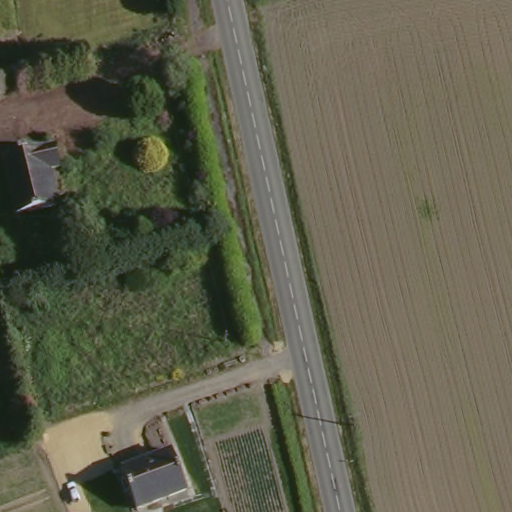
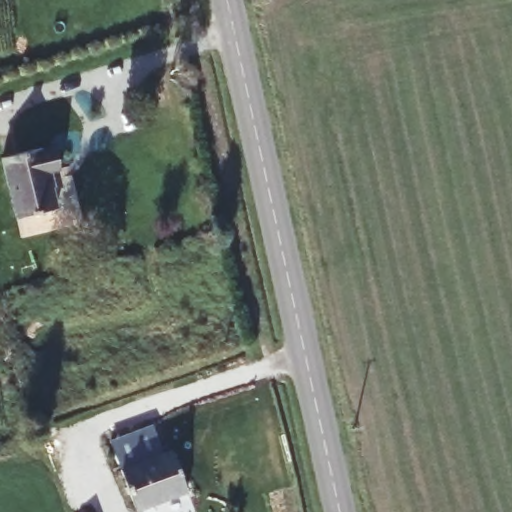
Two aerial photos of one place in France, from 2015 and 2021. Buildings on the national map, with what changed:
unchanged [(48,186),(53,206),(15,217),(0,168),(0,159),(36,149),(36,153),(50,149),(56,167),(46,170),(51,184),(48,186)]
unchanged [(135,511),(120,472),(169,454),(184,492),(135,511)]

